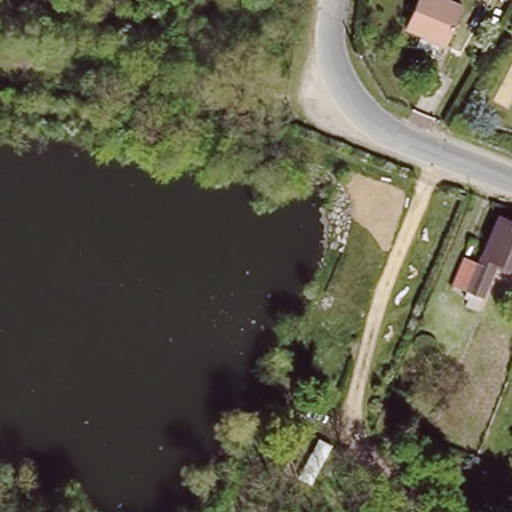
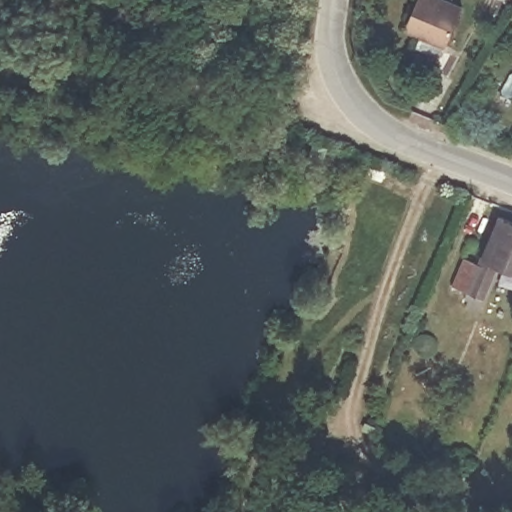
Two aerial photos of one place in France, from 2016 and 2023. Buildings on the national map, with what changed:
unchanged [(416,0),(455,0),(466,4),(445,51),(422,40),(426,31),(407,22),(416,0)]
unchanged [(466,305),(462,302),(464,298),(453,292),(469,256),(481,261),(503,216),(512,220),(512,267),(501,261),(478,310),(474,318),(463,312),(466,305)]

